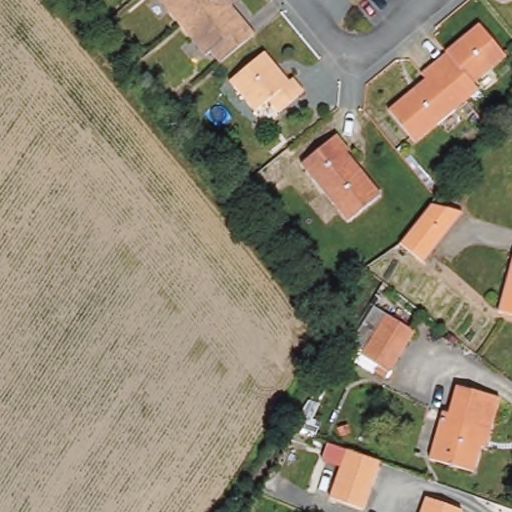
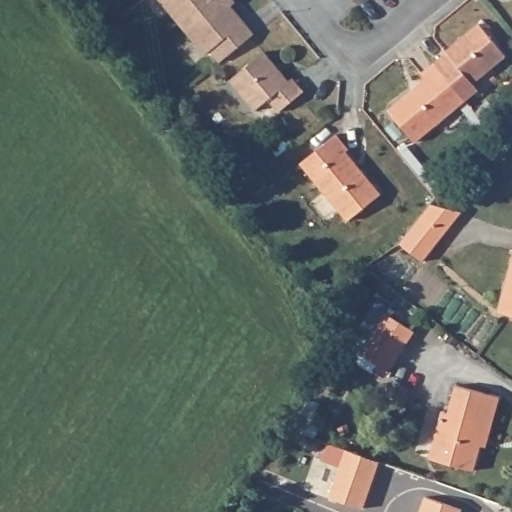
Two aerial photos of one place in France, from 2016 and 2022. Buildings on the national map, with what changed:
unchanged [(239,6),(262,34),(228,63),(217,50),(212,54),(189,25),(168,0),(241,0),(243,2),(239,6)]
unchanged [(421,74),(433,64),(446,53),(445,51),(478,24),(505,56),(472,83),(478,90),(465,101),(415,143),(388,111),(426,80),(421,74)]
unchanged [(270,52),(293,81),(298,78),(310,91),(283,113),(273,101),(260,112),(234,81),(270,52)]
unchanged [(343,131),(356,147),(352,150),(387,192),(355,219),(307,161),(343,131)]
unchanged [(463,213),(424,262),(400,244),(431,204),(463,213)]
unchanged [(512,261),(512,315),(497,311),(512,261)]
unchanged [(412,328),(387,369),(360,352),(385,311),(412,328)]
unchanged [(452,415),(459,388),(503,400),(493,436),(488,435),(480,471),(435,460),(446,414),(452,415)]
unchanged [(379,461),(362,508),(330,496),(346,449),(379,461)]
unchanged [(465,509),(463,512),(421,512),(427,496),(465,509)]

